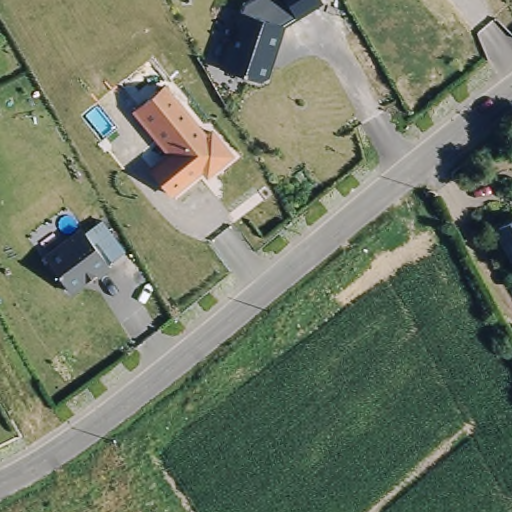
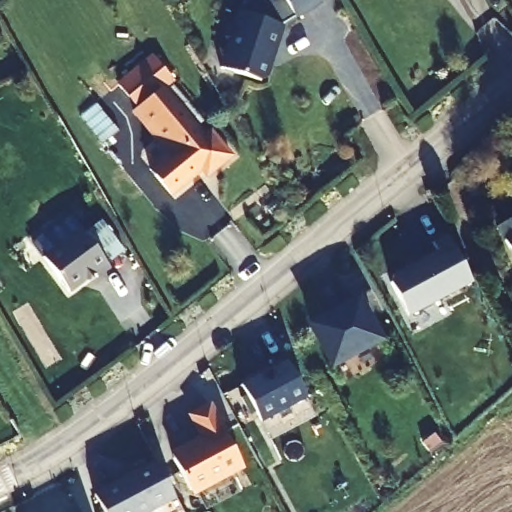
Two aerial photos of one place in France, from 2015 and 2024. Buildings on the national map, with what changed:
unchanged [(281,28),(282,21),(242,11),(244,5),(253,0),(288,0),(299,17),(281,28)]
unchanged [(288,0),(321,0),(299,17),(288,0)]
unchanged [(268,79),(220,71),(236,10),(282,21),(268,79)]
unchanged [(205,179),(200,172),(168,195),(146,169),(167,154),(133,108),(166,82),(204,133),(213,126),(233,150),(205,179)]
unchanged [(85,229),(101,217),(125,247),(110,259),(112,262),(100,272),(96,268),(72,288),(45,254),(82,225),(85,229)]
unchanged [(512,219),(512,266),(491,229),(512,219)]
new [(387,274),(431,251),(427,242),(441,234),(466,280),(402,314),(385,282),(387,274)]
new [(325,314),(326,315),(336,310),(335,308),(351,299),(371,338),(325,363),(305,324),(325,314)]
new [(281,359),(300,395),(255,419),(235,383),(281,359)]
new [(170,449),(196,436),(185,414),(204,403),(236,465),(190,489),(183,487),(167,457),(170,449)]
new [(90,497),(103,490),(102,489),(122,478),(123,479),(131,476),(130,474),(152,463),(170,497),(156,504),(157,505),(145,512),(99,512),(90,497)]

